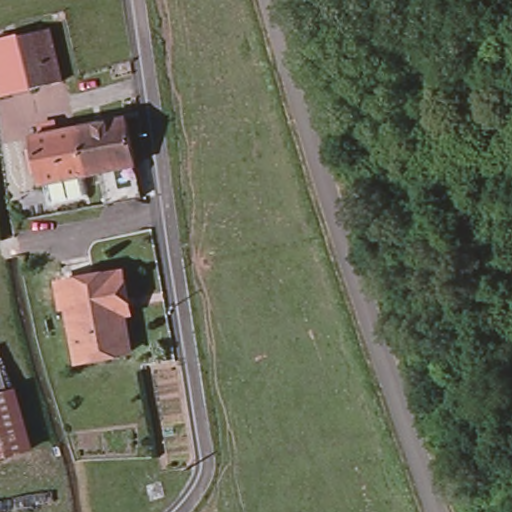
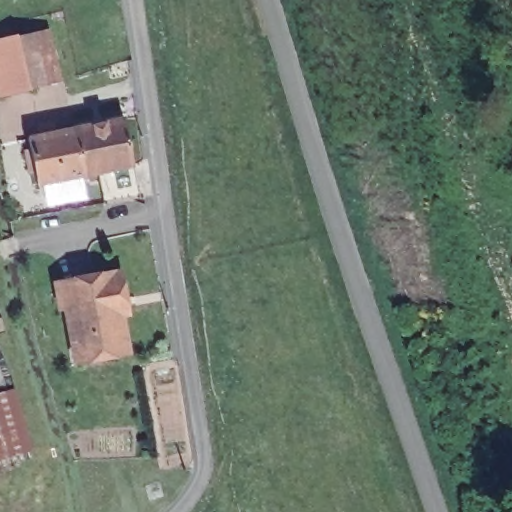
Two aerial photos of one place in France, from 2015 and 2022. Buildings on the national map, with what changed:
unchanged [(49,29),(62,81),(32,88),(19,35),(49,29)]
unchanged [(32,88),(1,96),(0,91),(0,39),(19,35),(32,88)]
unchanged [(126,118),(136,165),(96,172),(82,174),(76,128),(126,118)]
unchanged [(47,200),(44,181),(36,182),(32,156),(27,156),(26,150),(32,149),(31,137),(76,128),(82,174),(77,175),(81,195),(47,200)]
unchanged [(136,165),(142,197),(106,203),(96,172),(136,165)]
unchanged [(122,272),(129,312),(122,313),(129,350),(79,359),(64,282),(122,272)]
unchanged [(16,387),(31,451),(0,459),(0,364),(7,390),(16,387)]

